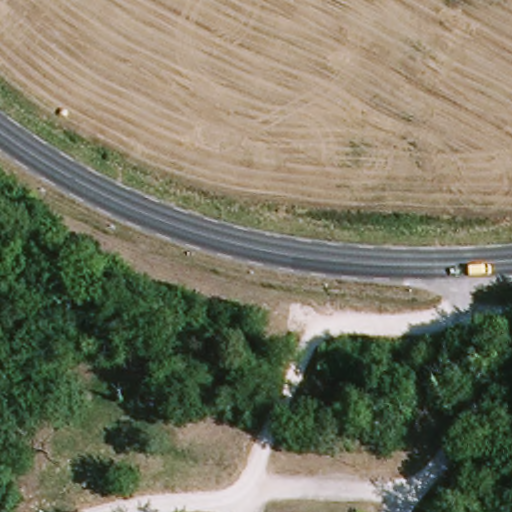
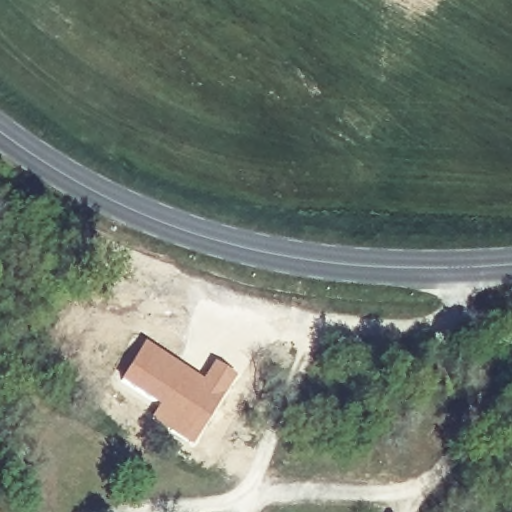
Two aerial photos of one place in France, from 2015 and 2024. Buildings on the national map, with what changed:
new [(141,343),(200,379),(211,362),(235,378),(188,449),(145,420),(152,410),(117,381),(141,343)]

